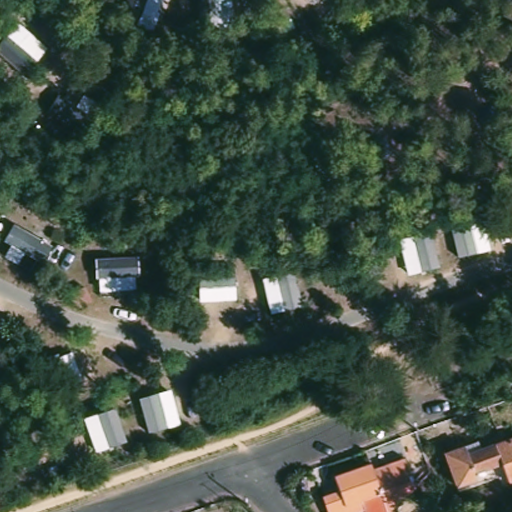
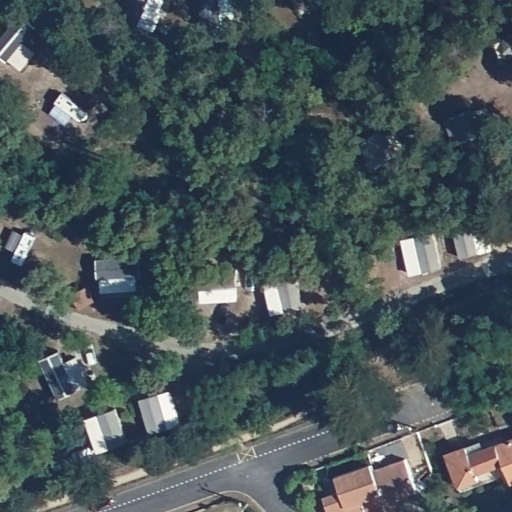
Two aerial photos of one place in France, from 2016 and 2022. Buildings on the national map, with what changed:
unchanged [(83,288),(91,304),(77,310),(69,296),(83,288)]
unchanged [(130,359),(130,375),(112,373),(113,357),(130,359)]
unchanged [(496,466),(489,447),(512,439),(512,483),(503,486),(496,466)]
unchanged [(440,456),(460,449),(463,457),(489,447),(496,466),(470,476),(471,481),(462,485),(452,489),(449,481),(440,456)]
unchanged [(399,460),(409,490),(387,511),(386,512),(381,512),(366,471),(399,460)]
unchanged [(358,512),(322,512),(317,498),(334,492),(329,477),(364,465),(366,471),(381,512),(360,512),(359,511),(358,512)]
unchanged [(388,512),(386,512),(387,511),(388,512)]

